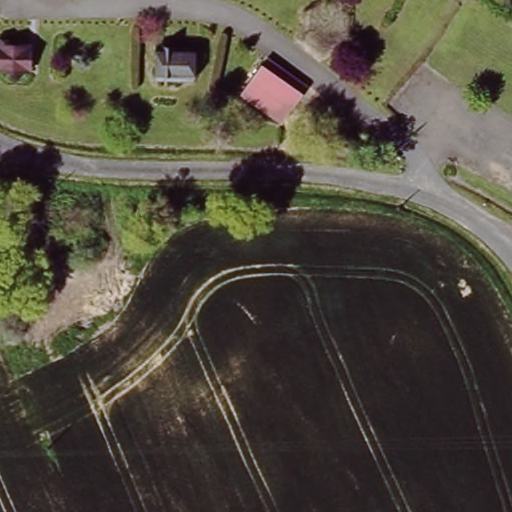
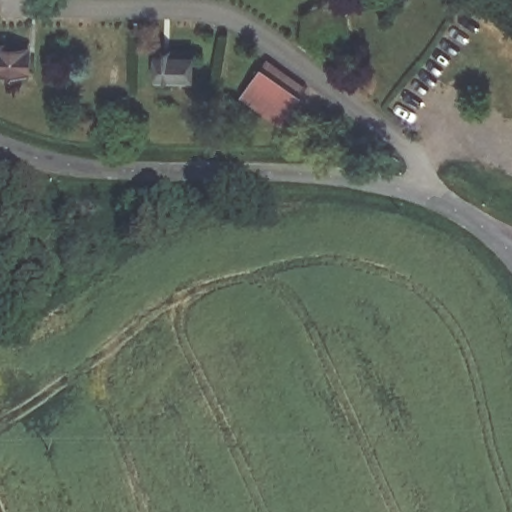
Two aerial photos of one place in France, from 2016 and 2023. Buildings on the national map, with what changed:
unchanged [(35,79),(0,80),(0,42),(34,41),(35,79)]
unchanged [(197,81),(159,84),(157,49),(195,46),(197,81)]
unchanged [(310,93),(291,124),(244,96),(262,65),(310,93)]

